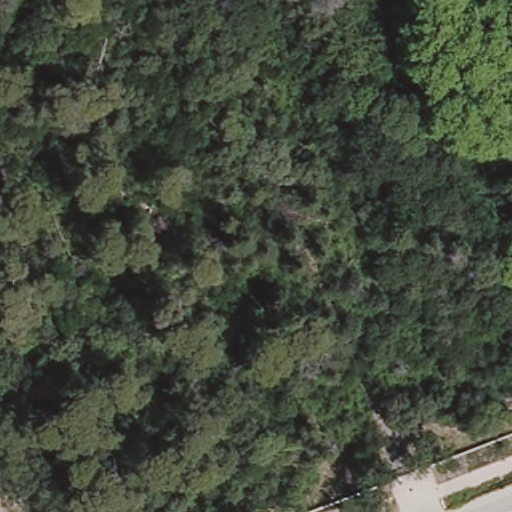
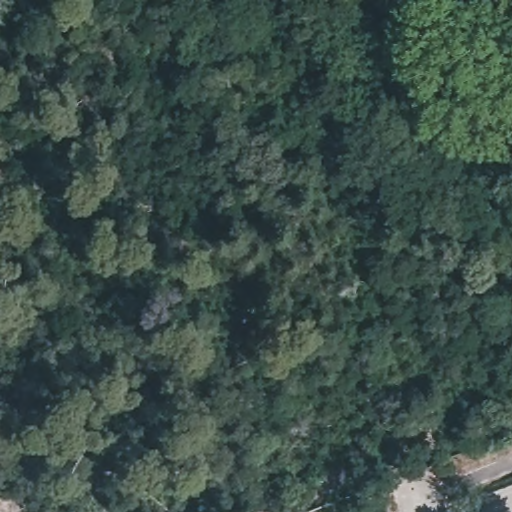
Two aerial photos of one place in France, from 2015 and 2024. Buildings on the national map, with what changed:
[]

